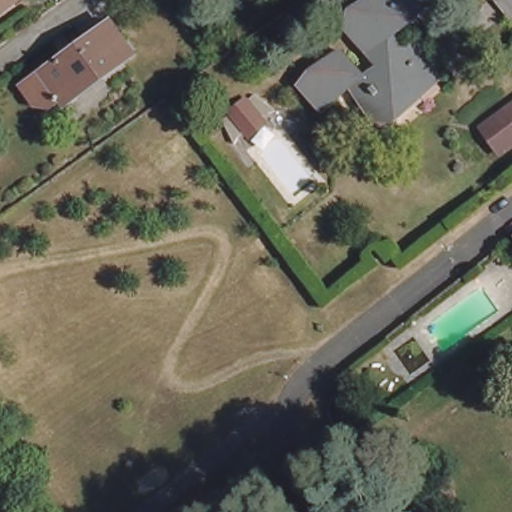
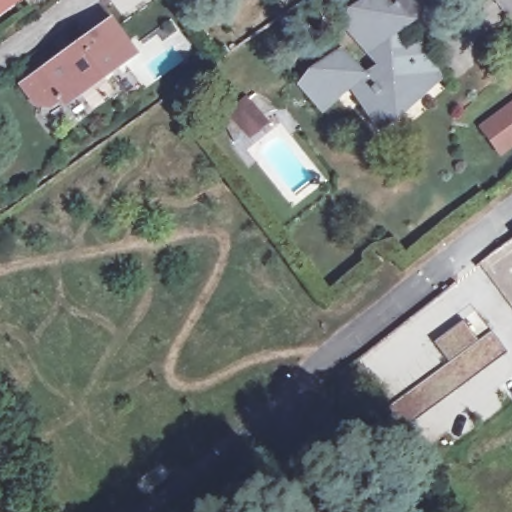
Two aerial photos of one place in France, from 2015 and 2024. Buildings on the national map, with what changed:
unchanged [(0,1),(0,0),(30,0),(24,4),(10,15),(4,7),(0,1)]
unchanged [(374,119),(361,102),(367,97),(357,85),(340,99),(341,101),(325,113),(307,87),(321,76),(319,74),(334,62),(336,65),(347,56),(371,85),(384,74),(350,29),(361,20),(357,15),(375,0),(380,6),(388,0),(427,0),(432,6),(413,21),(415,24),(394,41),(406,57),(424,44),(434,57),(426,64),(442,85),(424,100),(384,131),(374,119)]
unchanged [(58,100),(49,106),(37,105),(22,85),(111,20),(135,54),(71,100),(62,106),(58,100)]
unchanged [(252,136),(248,130),(246,132),(243,139),(241,145),(228,122),(260,96),(281,112),(274,114),(266,116),(261,119),(260,120),(266,125),(252,136)]
unchanged [(512,104),(512,144),(500,153),(481,127),(512,104)]
new [(434,342),(464,320),(479,341),(492,331),(507,352),(404,428),(388,407),(449,362),(434,342)]

